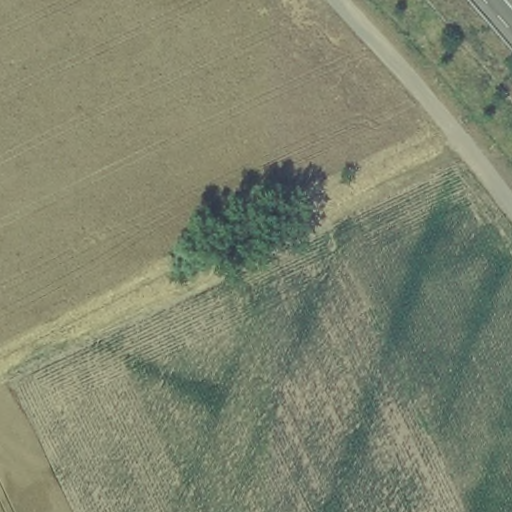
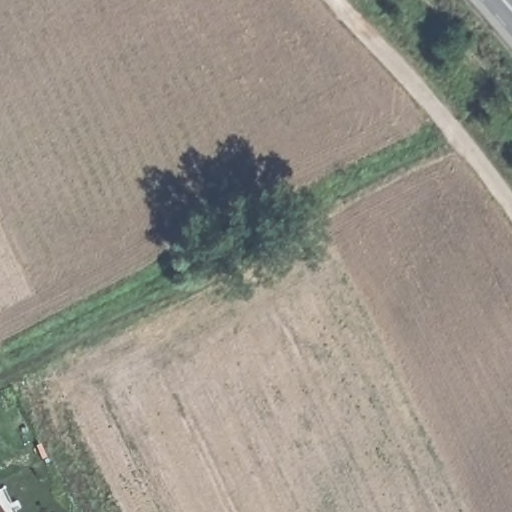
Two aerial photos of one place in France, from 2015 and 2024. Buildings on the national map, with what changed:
[]

